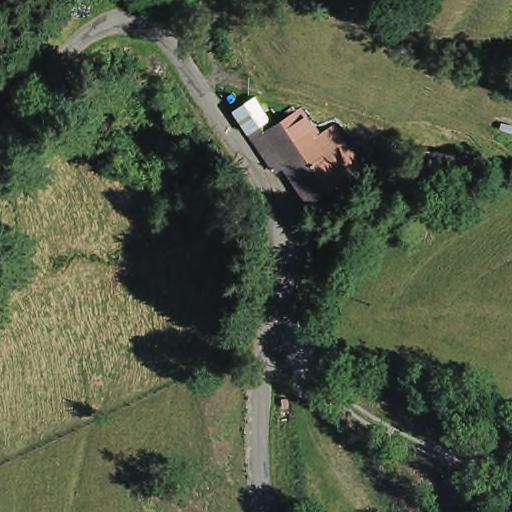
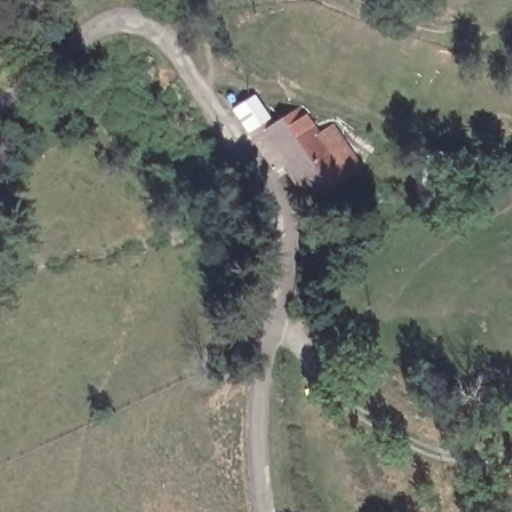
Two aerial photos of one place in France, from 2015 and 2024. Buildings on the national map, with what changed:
unchanged [(304,196),(281,159),(269,166),(245,127),(243,129),(237,120),(228,108),(240,99),(252,91),(267,113),(273,122),(299,106),(316,134),(341,172),(304,196)]

